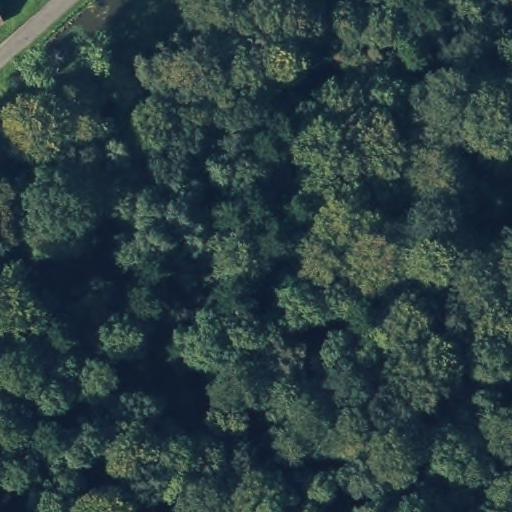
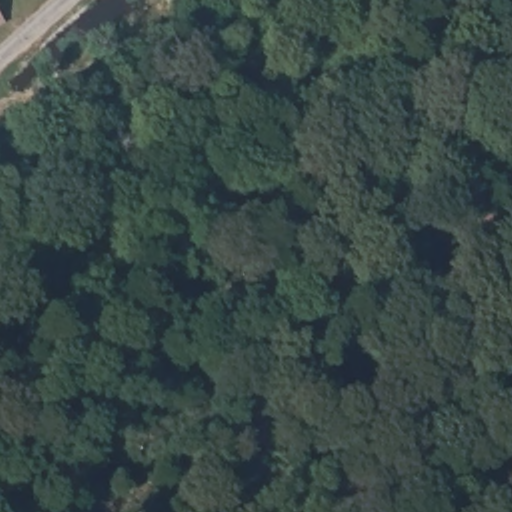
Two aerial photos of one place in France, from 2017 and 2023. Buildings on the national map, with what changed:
unchanged [(8,6),(0,11),(0,0),(4,0),(8,6)]

